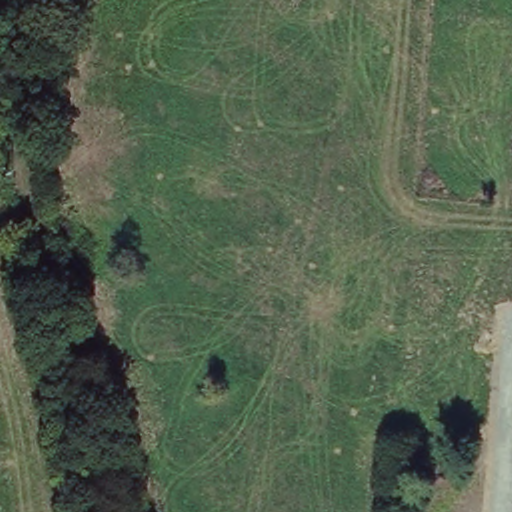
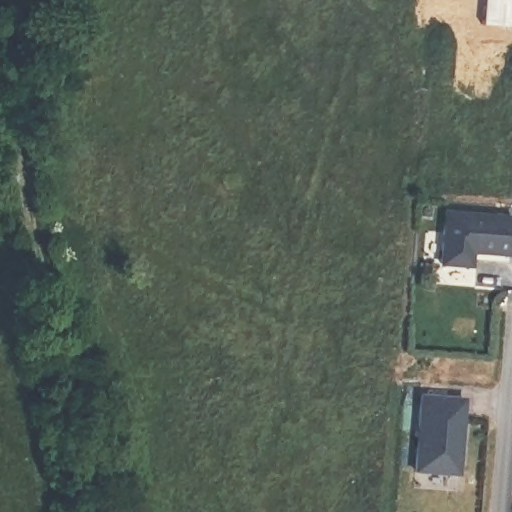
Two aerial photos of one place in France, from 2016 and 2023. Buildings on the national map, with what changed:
new [(511,217),(508,254),(469,251),(468,265),(438,262),(443,212),(511,217)]
new [(460,397),(454,471),(411,468),(418,393),(460,397)]

